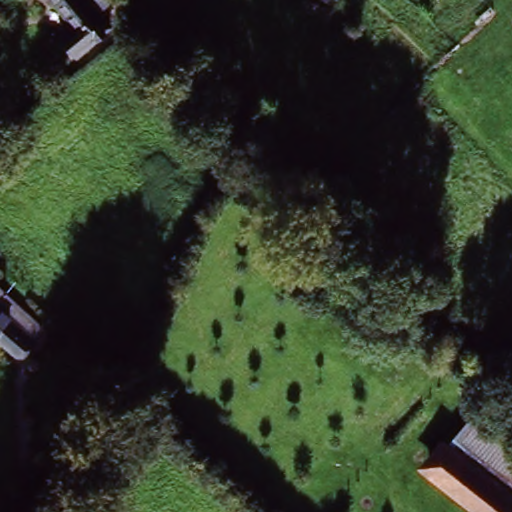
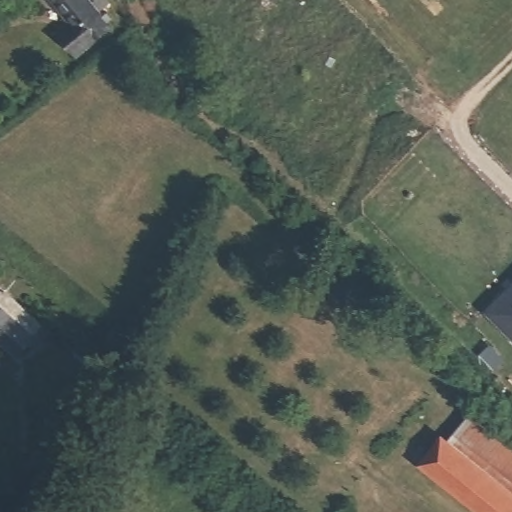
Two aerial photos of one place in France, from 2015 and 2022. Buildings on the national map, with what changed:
unchanged [(48,24),(63,9),(54,0),(88,0),(101,14),(84,31),(69,46),(48,24)]
new [(512,284),(512,339),(484,312),(512,284)]
unchanged [(0,342),(0,307),(29,333),(13,353),(0,342)]
unchanged [(443,431),(449,439),(471,417),(512,449),(512,512),(477,512),(418,463),(443,431)]

